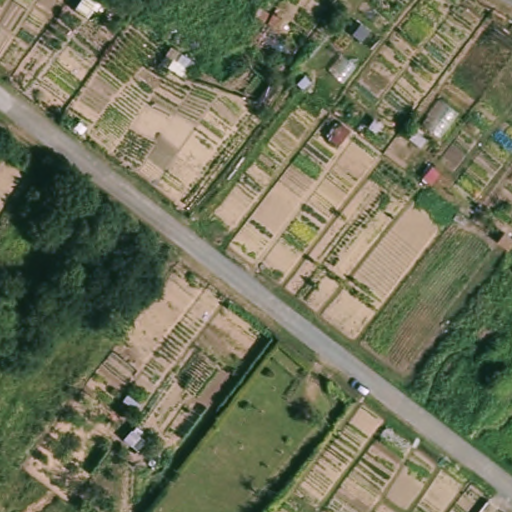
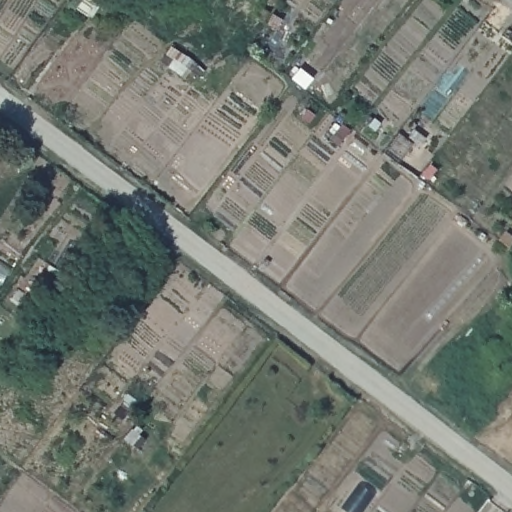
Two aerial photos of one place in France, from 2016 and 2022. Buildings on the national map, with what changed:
unchanged [(283,15),(278,23),(266,15),(272,7),(283,15)]
unchanged [(426,133),(420,140),(412,135),(417,127),(426,133)]
unchanged [(512,239),(512,243),(506,250),(495,239),(503,232),(512,239)]

